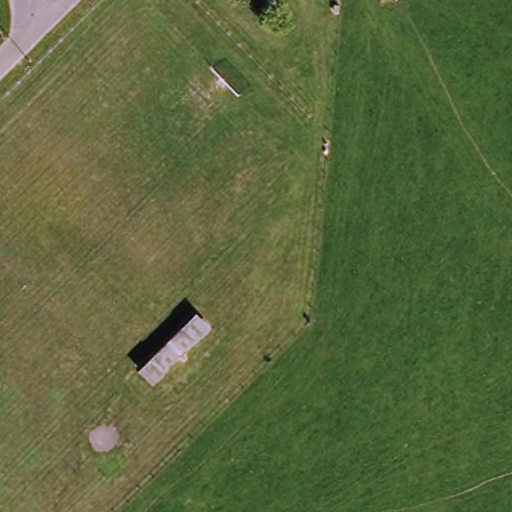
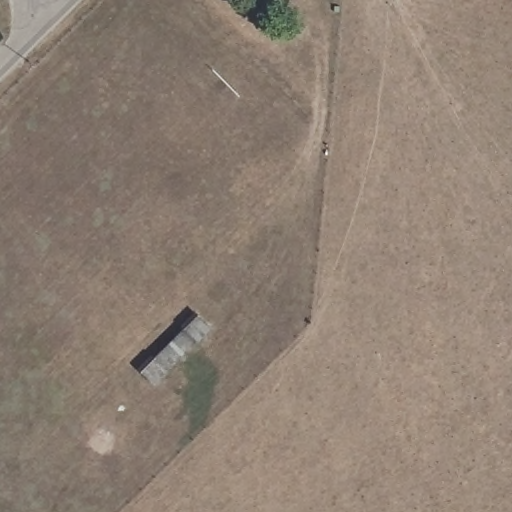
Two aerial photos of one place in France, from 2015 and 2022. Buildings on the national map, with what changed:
unchanged [(181,326),(193,316),(210,335),(198,345),(168,375),(158,387),(143,370),(155,359),(184,330),(181,326)]

